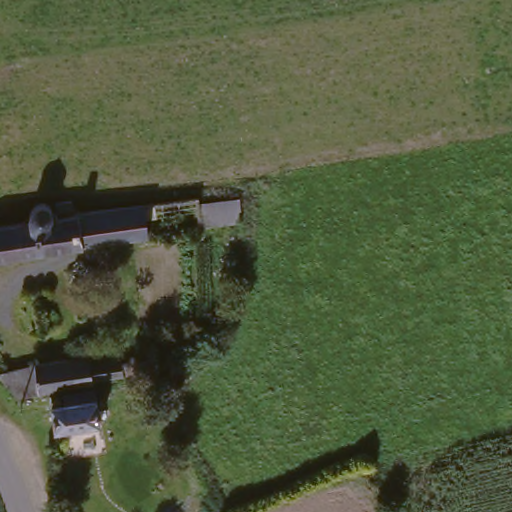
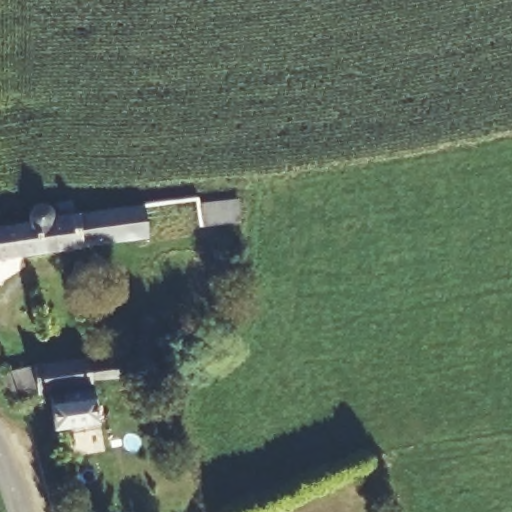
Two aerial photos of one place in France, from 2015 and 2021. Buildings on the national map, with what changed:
unchanged [(16,220),(19,203),(83,195),(88,209),(142,209),(146,235),(0,263),(0,221),(16,220)]
unchanged [(238,197),(241,218),(201,227),(198,200),(238,197)]
unchanged [(111,360),(113,380),(84,384),(84,389),(42,395),(8,399),(1,377),(39,371),(111,360)]
unchanged [(84,398),(88,419),(46,426),(43,405),(84,398)]

